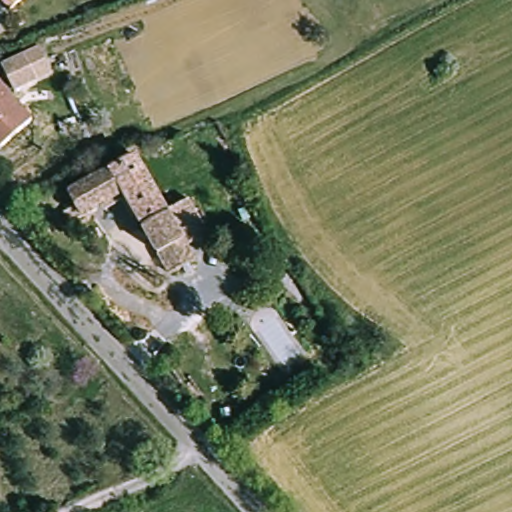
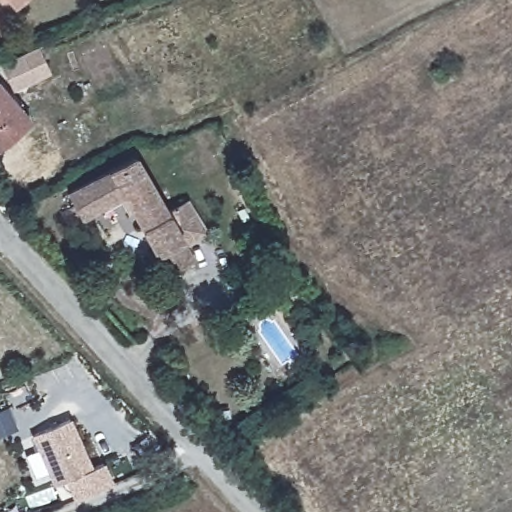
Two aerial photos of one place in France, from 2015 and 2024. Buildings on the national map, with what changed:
unchanged [(19,0),(12,5),(7,0),(19,0)]
unchanged [(22,48),(33,76),(12,84),(1,57),(22,48)]
unchanged [(34,119),(23,128),(28,134),(8,152),(0,144),(0,82),(34,119)]
unchanged [(133,155),(167,210),(175,224),(186,241),(196,258),(170,273),(123,196),(84,220),(68,195),(133,155)]
unchanged [(167,210),(191,195),(210,226),(186,241),(175,224),(167,210)]
new [(9,408),(19,430),(0,439),(0,413),(9,408)]
new [(77,418),(100,468),(111,463),(120,483),(84,499),(75,481),(64,486),(40,436),(77,418)]

